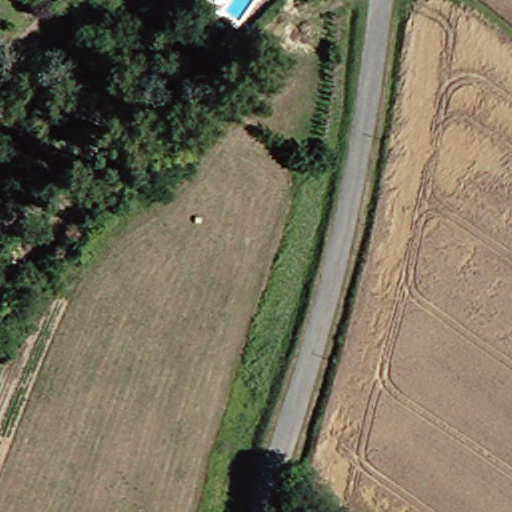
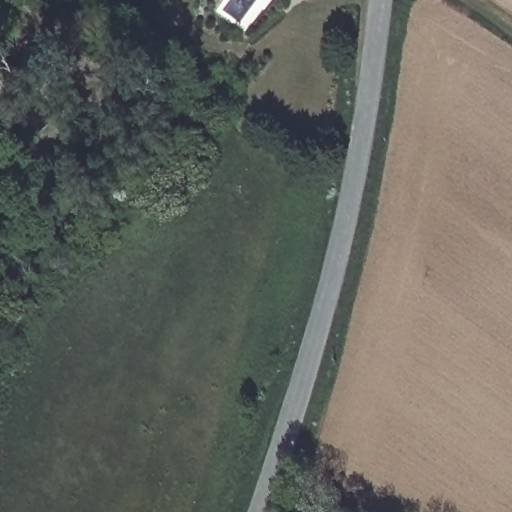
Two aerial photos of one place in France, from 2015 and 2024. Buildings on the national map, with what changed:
[]

